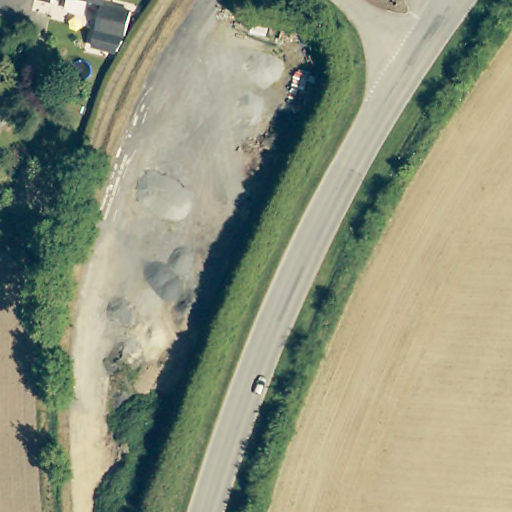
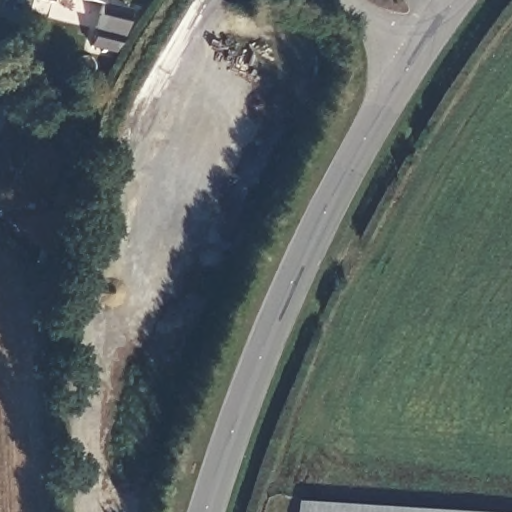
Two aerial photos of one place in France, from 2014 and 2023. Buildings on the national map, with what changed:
unchanged [(53,1),(49,0),(54,0),(53,1)]
unchanged [(93,44),(97,27),(103,2),(93,0),(105,0),(104,3),(132,10),(126,34),(118,50),(93,44)]
new [(470,512),(304,512),(305,501),(470,512)]

